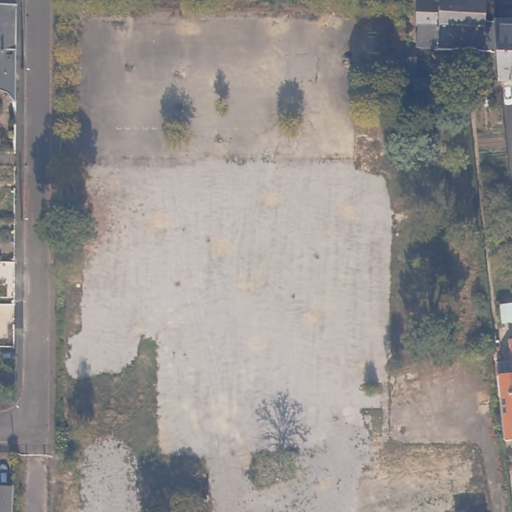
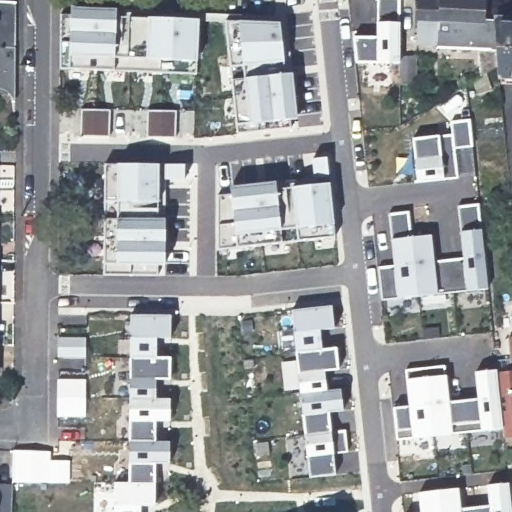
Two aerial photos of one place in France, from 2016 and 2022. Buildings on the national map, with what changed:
unchanged [(11,93),(0,86),(0,0),(11,0),(11,93)]
new [(376,39),(377,23),(377,0),(401,0),(402,23),(401,58),(401,65),(357,64),(353,36),(376,39)]
unchanged [(499,66),(494,69),(482,45),(436,44),(436,40),(415,40),(416,18),(413,17),(414,0),(483,0),(483,16),(494,17),(499,66)]
new [(115,71),(70,69),(61,68),(61,15),(70,16),(71,9),(118,9),(118,17),(148,19),(201,20),(198,62),(199,75),(115,71)]
new [(226,15),(287,16),(294,74),(298,120),(292,120),(293,130),(238,134),(238,125),(227,22),(226,15)]
unchanged [(499,66),(494,17),(512,18),(512,73),(500,73),(499,66)]
unchanged [(419,58),(418,92),(401,92),(401,58),(419,58)]
new [(471,120),(473,148),(456,150),(458,180),(445,182),(417,185),(413,139),(440,135),(452,135),(451,122),(471,120)]
new [(218,250),(219,199),(231,199),(231,187),(276,182),(278,190),(292,189),(315,185),(313,160),(328,157),(336,237),(238,247),(218,250)]
new [(118,164),(160,164),(186,164),(187,182),(160,182),(160,204),(159,219),(166,219),(168,267),(159,267),(159,275),(106,275),(107,265),(106,201),(105,164),(118,164)]
new [(437,262),(463,260),(461,232),(459,206),(480,204),(483,230),(490,290),(397,300),(382,300),(379,269),(394,267),(391,240),(390,215),(409,212),(412,237),(434,235),(437,262)]
new [(310,477),(290,310),(333,306),(336,329),(322,330),(325,350),(337,347),(340,370),(326,371),(327,390),(341,388),(343,411),(331,413),(332,435),(346,432),(349,453),(334,455),(335,475),(310,477)]
new [(130,482),(131,359),(131,315),(171,315),(171,338),(159,340),(159,357),(171,356),(171,380),(157,380),(157,399),(171,400),(171,422),(158,422),(158,441),(171,442),(171,465),(157,465),(156,505),(143,505),(143,512),(116,512),(116,483),(130,482)]
unchanged [(493,376),(491,362),(507,361),(506,344),(512,343),(512,440),(499,441),(493,376)]
new [(408,406),(405,380),(406,370),(445,365),(447,375),(450,401),(477,398),(474,372),(492,369),(493,376),(498,430),(412,438),(398,440),(397,430),(394,408),(408,406)]
new [(87,379),(86,417),(56,417),(57,380),(87,379)]
new [(51,484),(12,483),(12,450),(51,451),(51,484)]
demolished [(129,512),(87,512),(87,490),(80,490),(80,481),(87,481),(87,455),(129,454),(129,512)]
unchanged [(3,477),(3,512),(0,512),(0,477),(3,477)]
new [(460,488),(462,510),(490,506),(488,485),(510,482),(512,496),(512,512),(421,512),(419,493),(460,488)]

